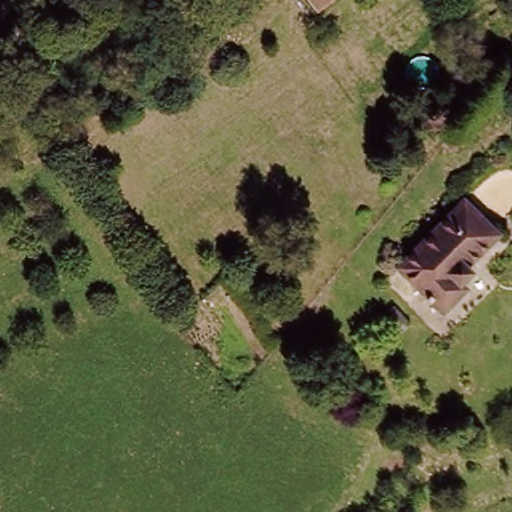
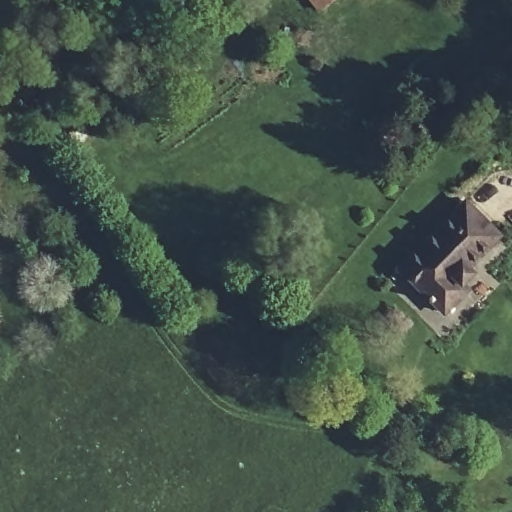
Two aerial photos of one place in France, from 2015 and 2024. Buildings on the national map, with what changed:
unchanged [(315,0),(331,0),(321,9),(315,0)]
unchanged [(470,264),(475,271),(463,282),(468,288),(445,312),(400,268),(465,199),(500,232),(470,264)]

